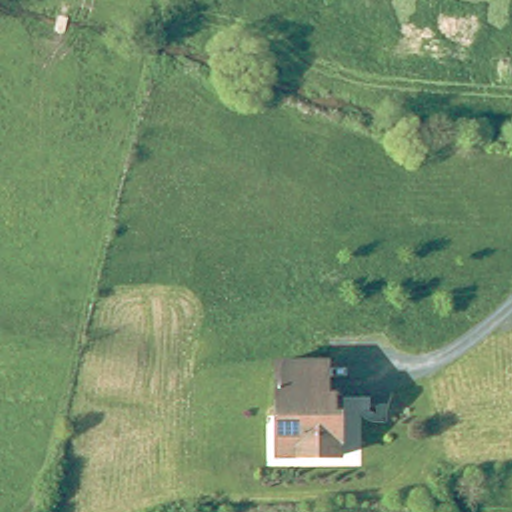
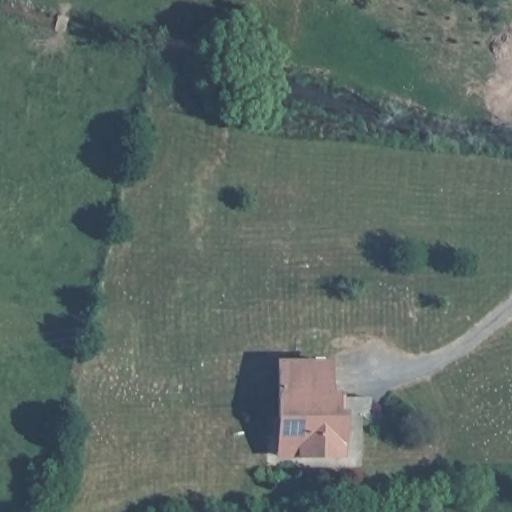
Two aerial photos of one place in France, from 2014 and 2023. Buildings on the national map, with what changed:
unchanged [(345,455),(282,454),(284,360),(333,361),(332,392),(347,392),(345,451),(345,455)]

